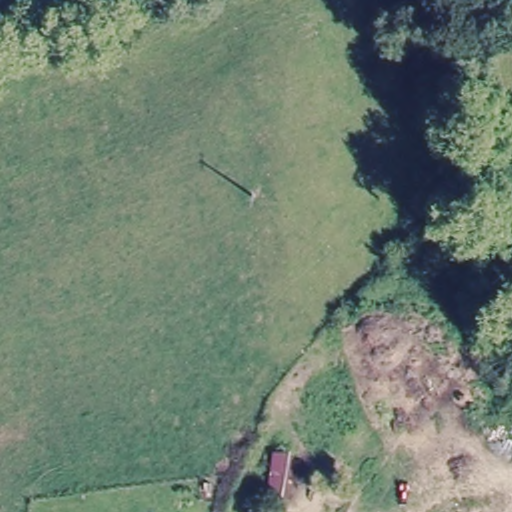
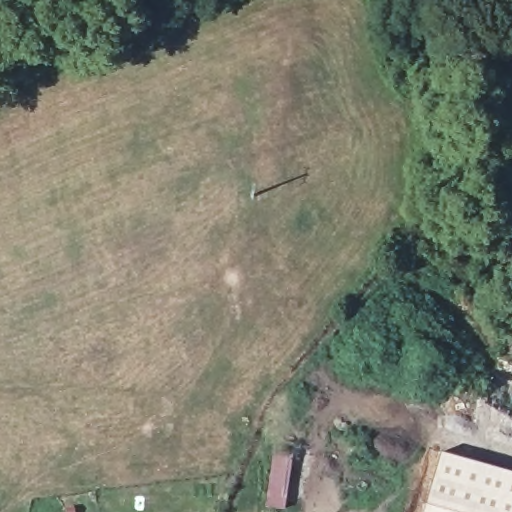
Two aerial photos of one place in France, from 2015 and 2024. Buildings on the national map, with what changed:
unchanged [(282,452),(300,451),(299,503),(282,501),(282,452)]
new [(512,512),(424,512),(441,451),(512,472),(512,512)]

